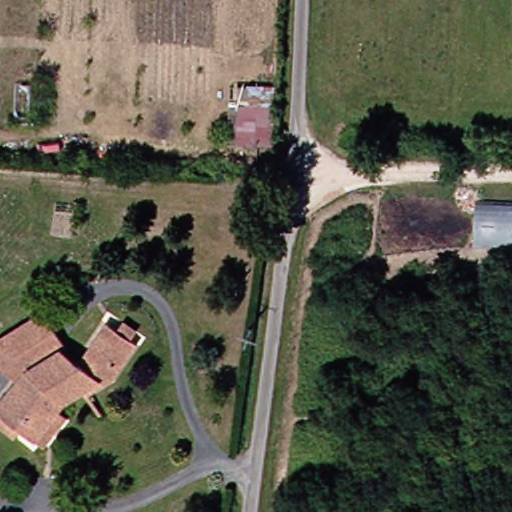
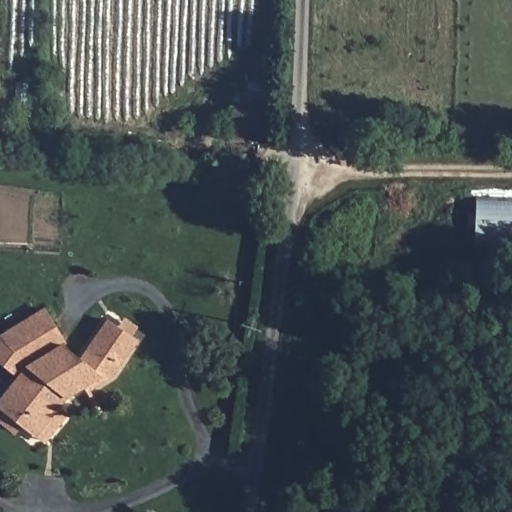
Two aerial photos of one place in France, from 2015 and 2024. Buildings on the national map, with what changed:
unchanged [(275,142),(228,140),(232,82),(277,84),(275,142)]
unchanged [(485,198),(512,199),(512,247),(483,245),(485,198)]
unchanged [(43,433),(31,423),(25,430),(0,411),(0,408),(4,402),(25,375),(0,355),(0,345),(8,335),(55,307),(75,341),(72,343),(90,357),(115,318),(128,326),(134,317),(143,323),(137,332),(145,337),(122,373),(95,390),(92,385),(73,395),(66,405),(74,411),(54,437),(47,430),(43,433)]

